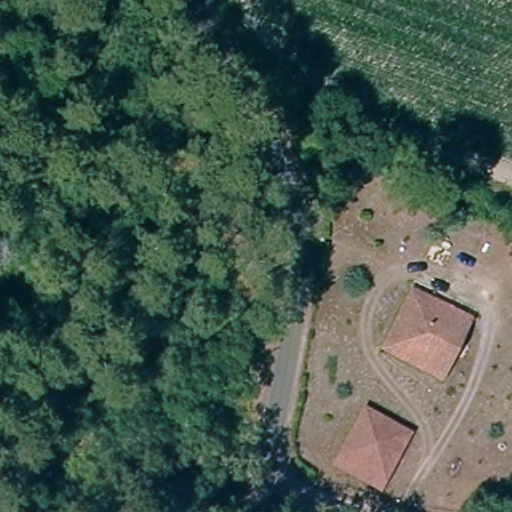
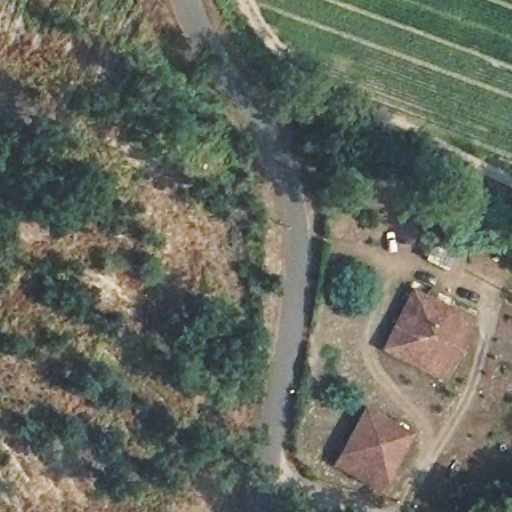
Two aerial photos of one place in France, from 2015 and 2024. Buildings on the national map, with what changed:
unchanged [(405,293),(461,319),(436,376),(379,347),(405,293)]
unchanged [(401,429),(376,487),(331,469),(358,409),(401,429)]

